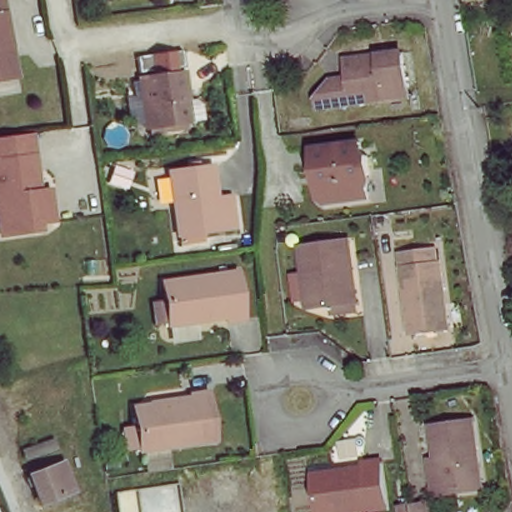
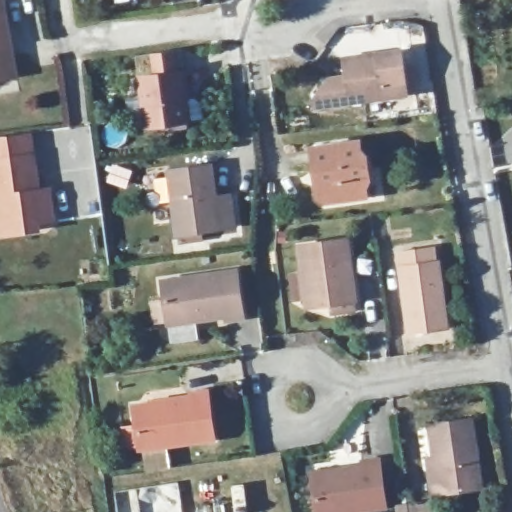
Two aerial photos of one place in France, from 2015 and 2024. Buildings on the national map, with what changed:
unchanged [(118,1),(118,0),(126,0),(118,1)]
unchanged [(147,2),(147,0),(161,0),(147,2)]
unchanged [(15,72),(0,74),(0,8),(10,7),(17,39),(22,71),(15,72)]
unchanged [(407,60),(412,103),(323,115),(322,107),(336,88),(350,86),(348,67),(407,60)]
unchanged [(142,135),(142,129),(136,80),(181,75),(185,96),(191,97),(196,100),(199,121),(183,124),(184,130),(142,135)]
unchanged [(359,139),(362,148),(367,152),(370,169),(365,177),(367,194),(325,200),(319,194),(318,187),(321,183),(319,168),(315,168),(313,146),(359,139)]
unchanged [(32,147),(35,162),(30,164),(32,183),(48,180),(52,211),(37,213),(38,221),(0,227),(0,151),(32,147)]
unchanged [(212,168),(217,200),(231,198),(235,230),(179,237),(171,174),(212,168)]
unchanged [(347,241),(356,300),(352,300),(352,311),(333,315),(331,303),(309,306),(300,247),(347,241)]
unchanged [(434,250),(436,263),(440,263),(449,328),(411,333),(400,254),(434,250)]
unchanged [(155,306),(167,304),(164,285),(237,273),(244,321),(229,323),(228,318),(170,327),(170,324),(157,326),(155,306)]
unchanged [(132,432),(145,431),(142,410),(197,402),(197,397),(214,395),(222,442),(148,452),(147,450),(135,452),(132,432)]
unchanged [(435,454),(430,422),(471,417),(481,485),(433,491),(431,476),(428,455),(435,454)]
demolished [(40,510),(22,457),(55,441),(76,492),(40,510)]
unchanged [(366,465),(366,460),(381,458),(387,505),(354,510),(354,512),(321,512),(315,472),(366,465)]
unchanged [(402,512),(401,504),(410,502),(411,512),(402,512)]

